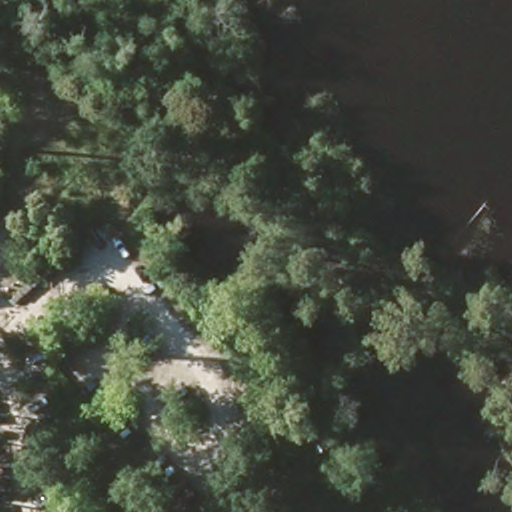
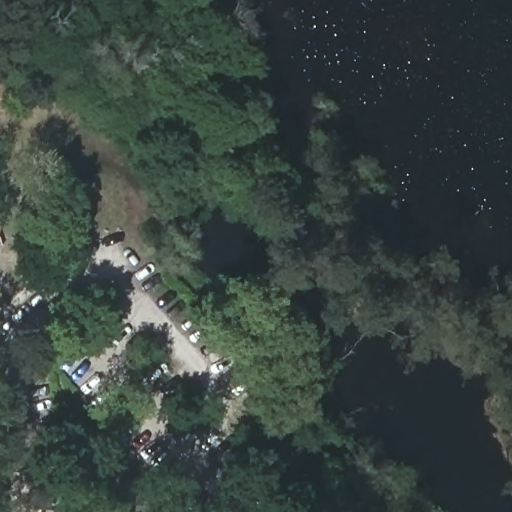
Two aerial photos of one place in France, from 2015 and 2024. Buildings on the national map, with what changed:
unchanged [(0,79),(0,75),(4,76),(20,80),(17,100),(6,98),(0,97),(0,79)]
unchanged [(156,77),(180,105),(157,124),(130,99),(156,77)]

